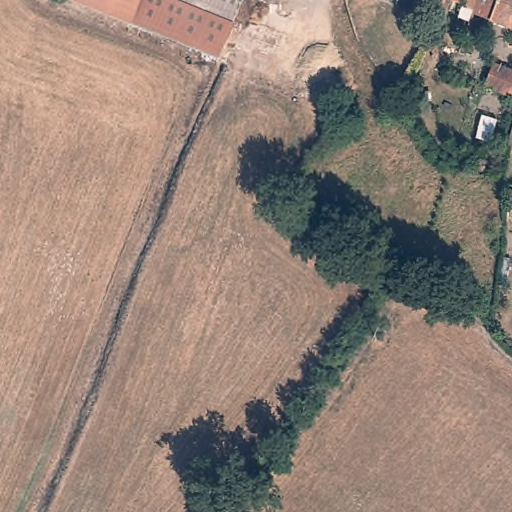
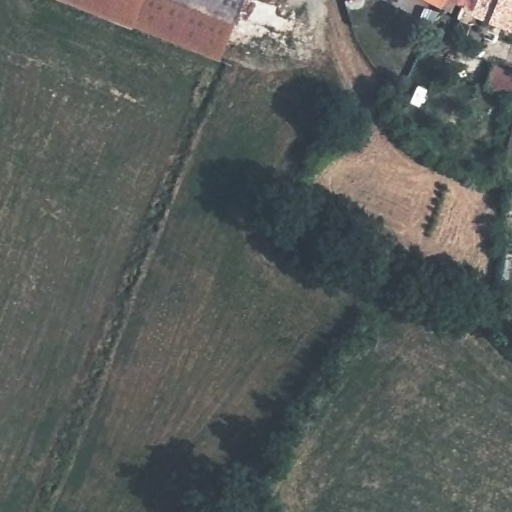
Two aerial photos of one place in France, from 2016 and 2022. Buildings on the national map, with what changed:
unchanged [(67,0),(245,0),(220,60),(67,0)]
unchanged [(431,0),(444,0),(442,5),(431,0)]
unchanged [(478,0),(474,10),(448,0),(478,0)]
unchanged [(473,14),(474,10),(478,0),(512,0),(512,29),(473,14)]
unchanged [(484,86),(493,65),(512,72),(512,99),(484,86)]
unchanged [(508,145),(512,130),(512,147),(508,145)]
unchanged [(509,206),(511,191),(512,192),(512,207),(509,206)]

